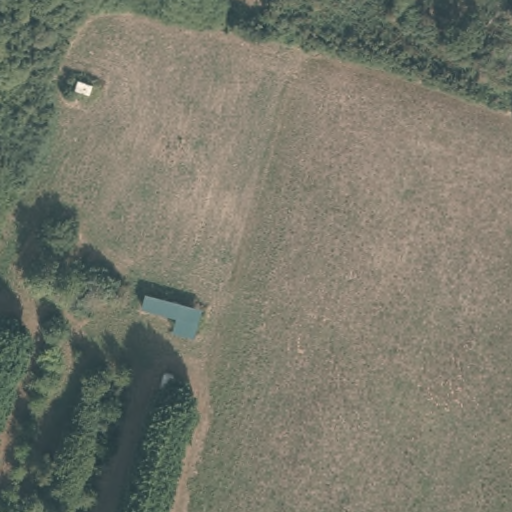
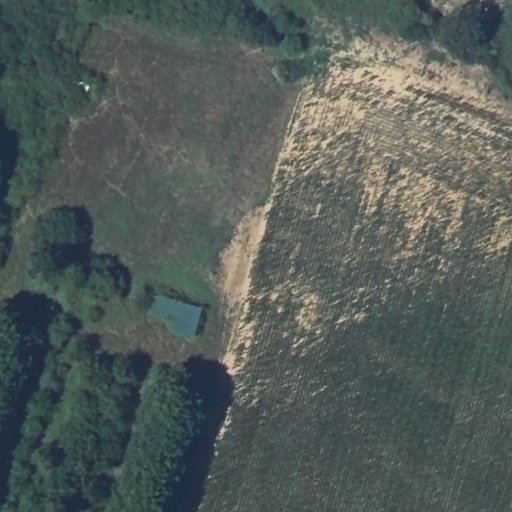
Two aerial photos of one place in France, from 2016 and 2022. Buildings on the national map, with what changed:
[]

